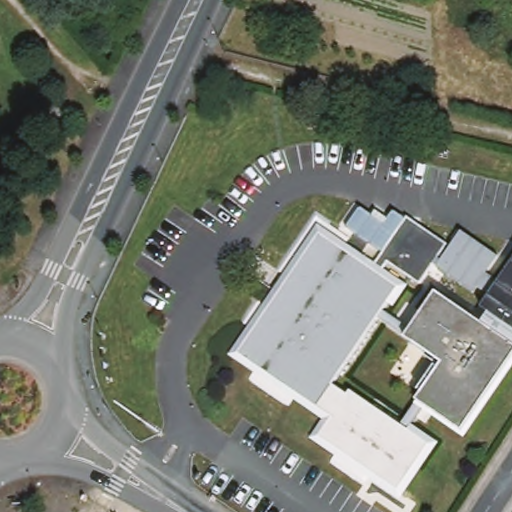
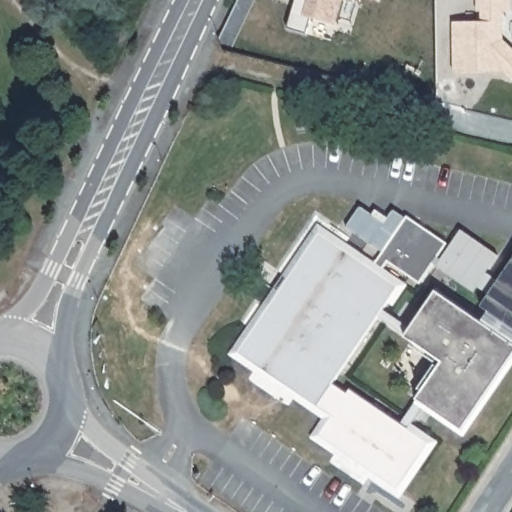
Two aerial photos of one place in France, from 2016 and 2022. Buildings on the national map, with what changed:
new [(335,27),(309,18),(304,32),(289,26),(297,0),(342,0),(335,27)]
new [(477,22),(477,0),(512,0),(512,10),(504,10),(504,40),(512,48),(512,80),(503,72),(454,72),(454,22),(477,22)]
unchanged [(372,269),(407,217),(446,242),(419,282),(388,261),(378,274),(397,286),(331,384),(345,393),(349,389),(427,443),(397,489),(318,437),(332,414),(237,353),(319,233),(372,269)]
unchanged [(482,322),(489,311),(481,305),(512,263),(512,344),(482,322)]
unchanged [(434,288),(512,344),(512,353),(459,430),(414,402),(438,364),(402,339),(434,288)]

